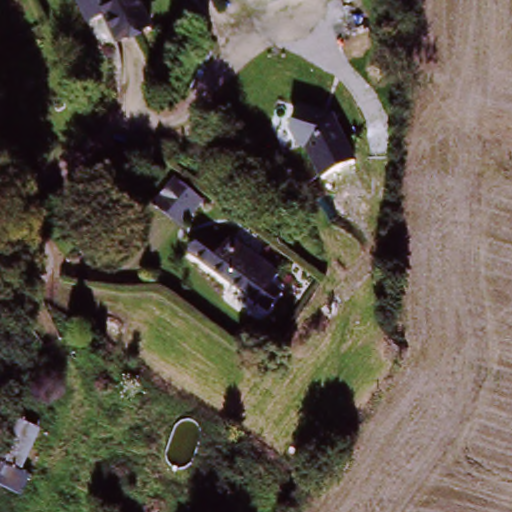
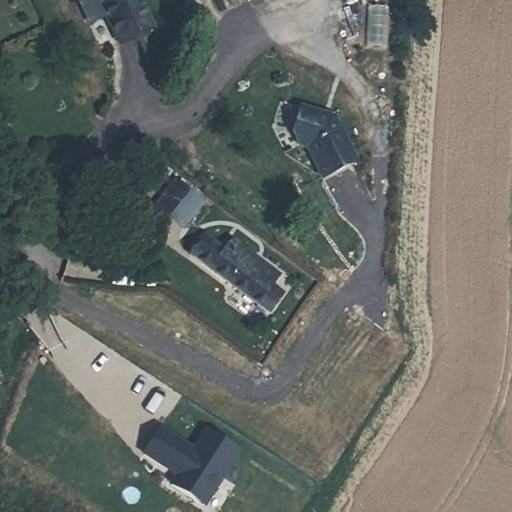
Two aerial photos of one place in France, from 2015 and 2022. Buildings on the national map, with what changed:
unchanged [(91,0),(132,0),(146,30),(113,46),(91,0)]
unchanged [(332,113),(358,165),(321,180),(306,150),(297,147),(288,131),(298,104),(332,113)]
unchanged [(176,227),(163,217),(184,192),(196,202),(176,227)]
unchanged [(224,281),(188,255),(200,239),(224,256),(232,246),(243,255),(275,279),(268,288),(276,295),(265,310),(224,281)]
new [(141,456),(157,432),(191,455),(204,434),(237,456),(201,510),(168,487),(174,480),(174,479),(166,474),(141,456)]

